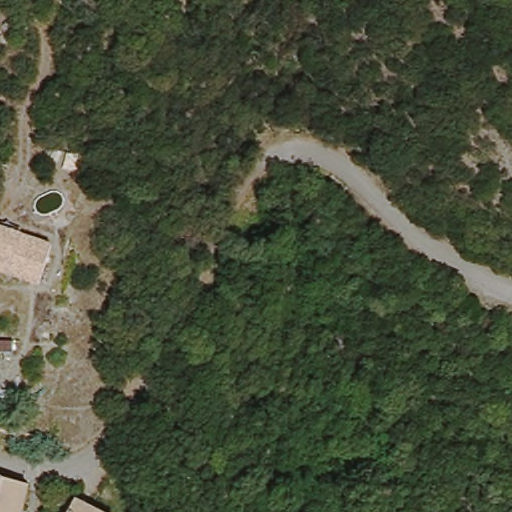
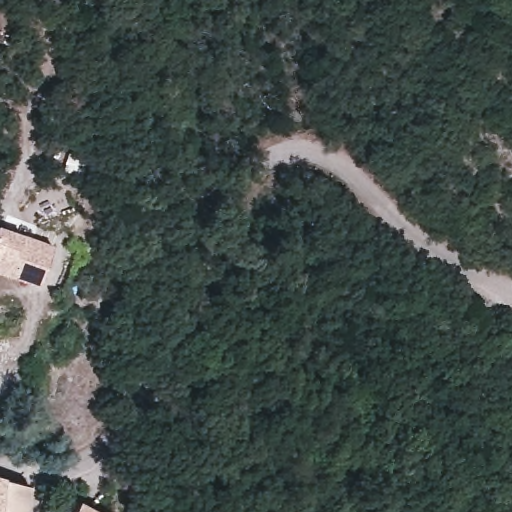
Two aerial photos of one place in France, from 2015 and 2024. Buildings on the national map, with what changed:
unchanged [(55,243),(41,283),(0,275),(0,227),(55,243)]
unchanged [(29,472),(20,512),(0,512),(0,467),(29,472)]
unchanged [(61,506),(63,495),(76,497),(74,507),(99,512),(44,512),(46,503),(61,506)]

